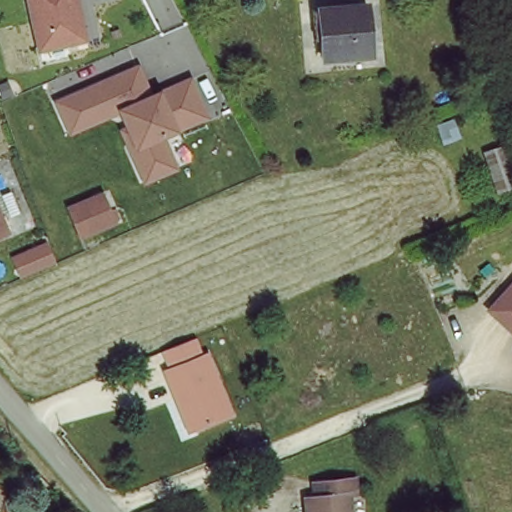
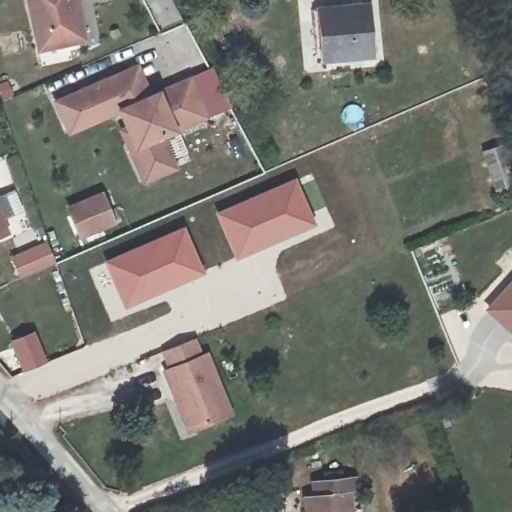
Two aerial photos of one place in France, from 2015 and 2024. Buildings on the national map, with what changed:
unchanged [(33,53),(21,0),(76,0),(85,39),(33,53)]
unchanged [(363,6),(370,55),(321,59),(315,8),(363,6)]
unchanged [(138,62),(151,90),(191,73),(211,121),(169,139),(181,170),(141,187),(113,117),(68,136),(51,101),(138,62)]
unchanged [(512,174),(512,184),(494,191),(481,150),(501,143),(512,174)]
new [(296,176),(317,225),(235,260),(214,211),(296,176)]
unchanged [(107,221),(75,234),(63,208),(95,195),(107,221)]
unchanged [(4,226),(0,228),(0,219),(4,226)]
new [(184,224),(206,274),(123,310),(102,260),(184,224)]
unchanged [(48,238),(58,264),(18,281),(8,256),(48,238)]
unchanged [(512,278),(512,327),(489,306),(512,278)]
unchanged [(183,399),(171,370),(176,368),(169,351),(196,340),(202,356),(210,353),(234,410),(202,423),(194,426),(183,399)]
unchanged [(349,499),(349,512),(307,512),(307,498),(315,497),(315,483),(359,481),(359,499),(349,499)]

